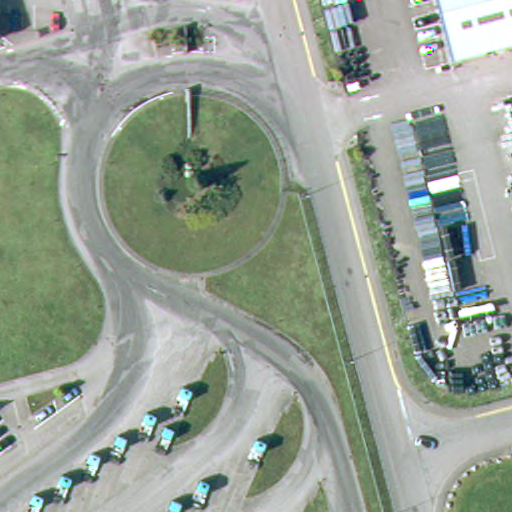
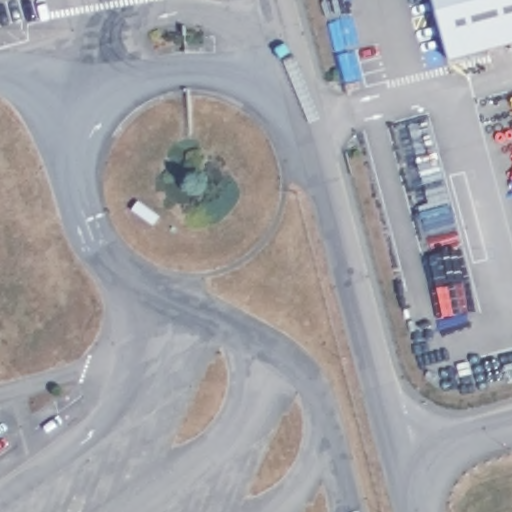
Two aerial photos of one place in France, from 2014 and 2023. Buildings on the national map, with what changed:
unchanged [(440,0),(512,0),(512,46),(456,61),(440,0)]

